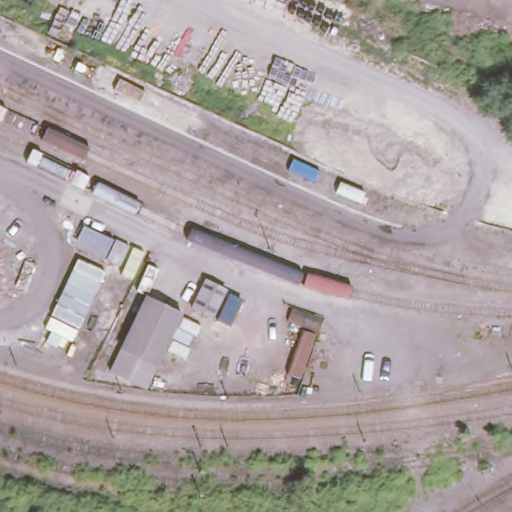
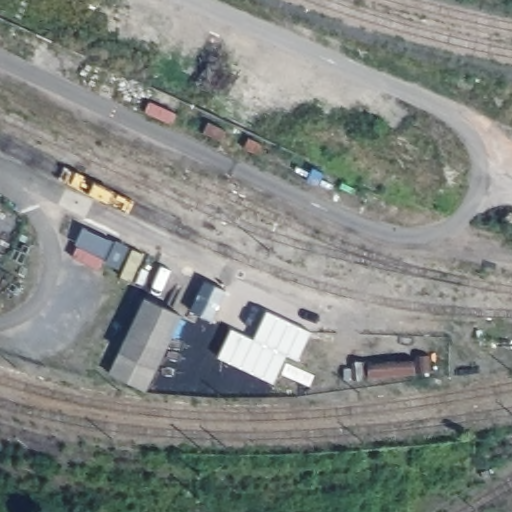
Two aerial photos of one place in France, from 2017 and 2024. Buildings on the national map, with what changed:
new [(129,248),(120,269),(104,262),(99,272),(70,260),(85,228),(129,248)]
unchanged [(227,289),(214,317),(191,306),(202,277),(227,289)]
unchanged [(184,312),(147,390),(111,372),(145,294),(184,312)]
new [(255,339),(267,311),(312,331),(299,360),(287,354),(274,383),(219,357),(232,328),(255,339)]

